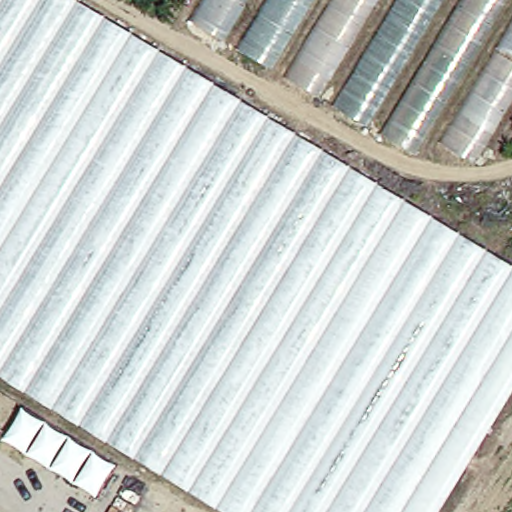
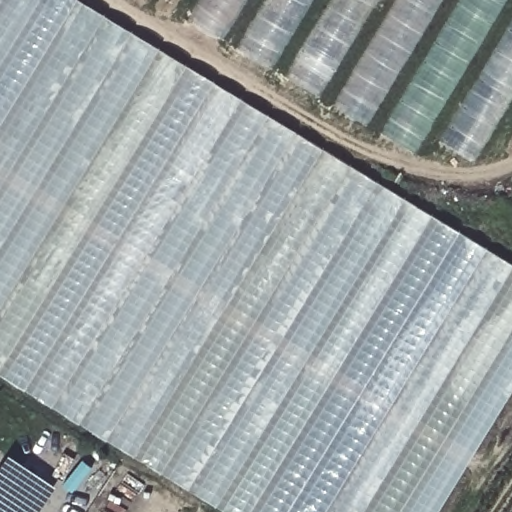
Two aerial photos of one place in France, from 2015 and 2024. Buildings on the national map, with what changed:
unchanged [(0,379),(0,0),(75,0),(512,266),(512,378),(431,512),(219,512),(0,379)]
unchanged [(420,133),(407,149),(184,16),(194,0),(512,0),(512,80),(463,160),(420,133)]
new [(0,465),(8,454),(55,487),(38,512),(0,512),(0,465)]

